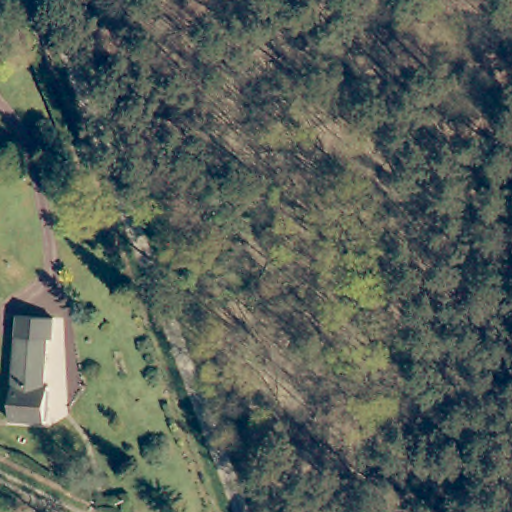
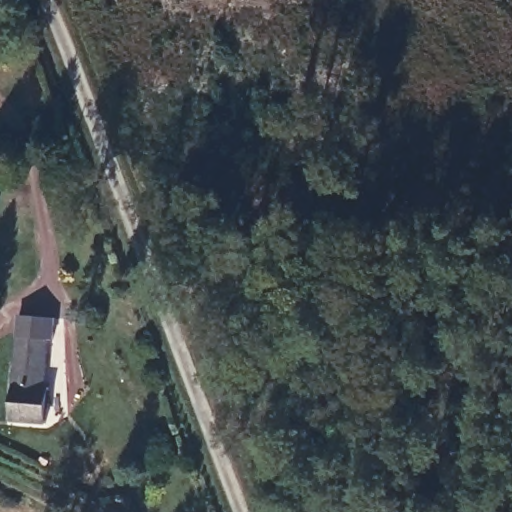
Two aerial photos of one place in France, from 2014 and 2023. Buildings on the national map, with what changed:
unchanged [(19,317),(55,321),(51,342),(46,342),(42,386),(49,387),(45,427),(9,422),(19,317)]
unchanged [(126,512),(114,512),(111,507),(122,503),(126,512)]

